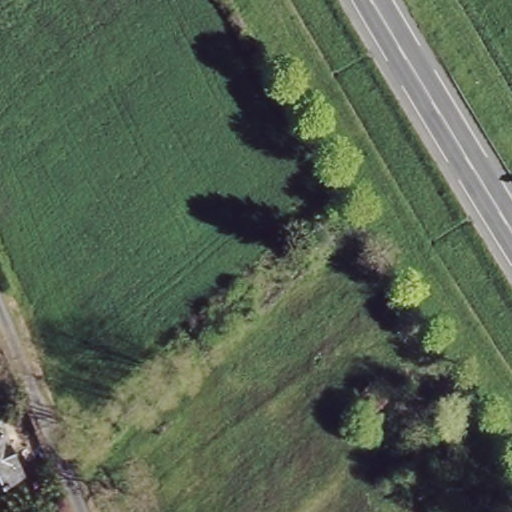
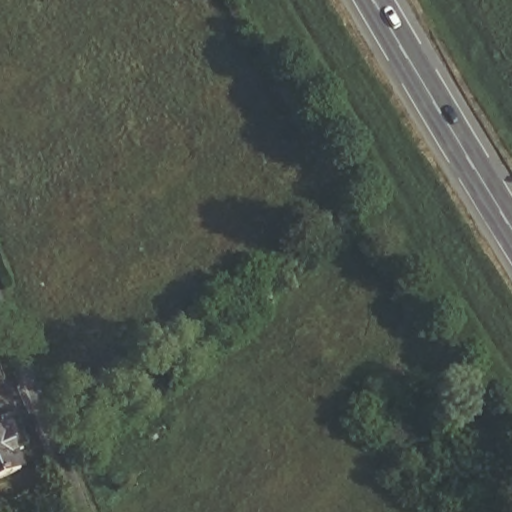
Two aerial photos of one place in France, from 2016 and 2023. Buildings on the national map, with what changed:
unchanged [(5,416),(17,445),(3,451),(11,470),(0,475),(0,418),(5,416)]
unchanged [(416,448),(423,456),(412,467),(405,458),(416,448)]
unchanged [(439,476),(430,484),(420,472),(429,464),(439,476)]

